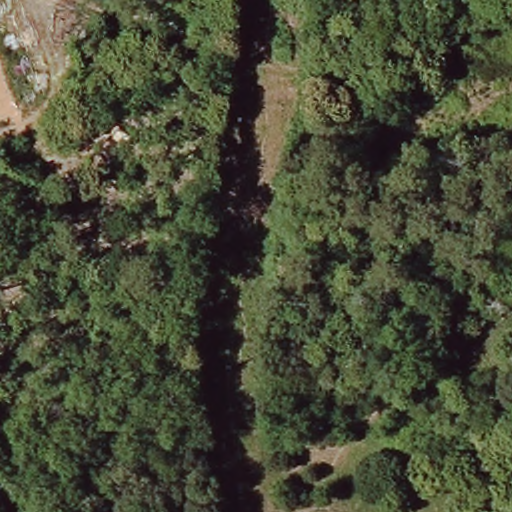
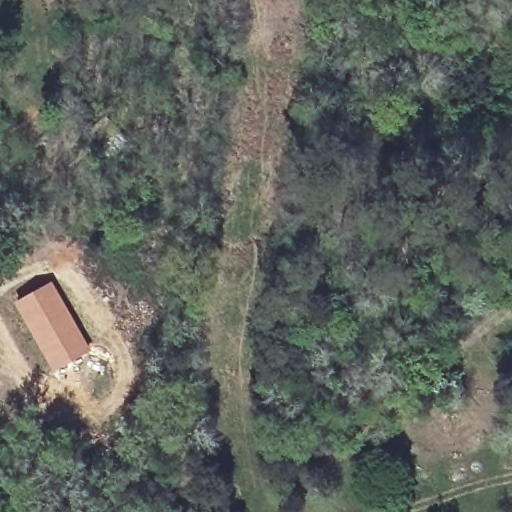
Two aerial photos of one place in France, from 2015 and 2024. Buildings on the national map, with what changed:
new [(50,281),(90,351),(51,371),(12,302),(50,281)]
unchanged [(188,510),(212,507),(212,512),(189,512),(188,510)]

